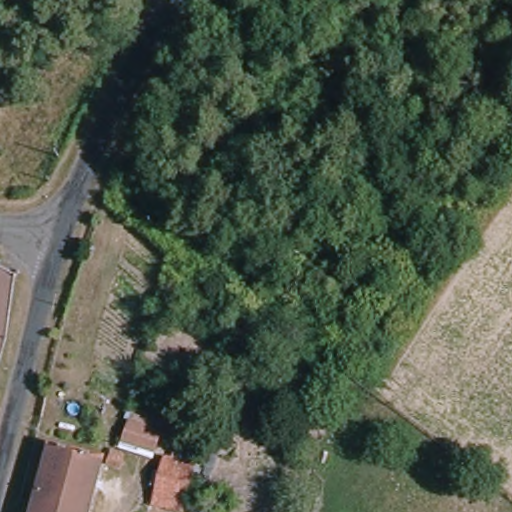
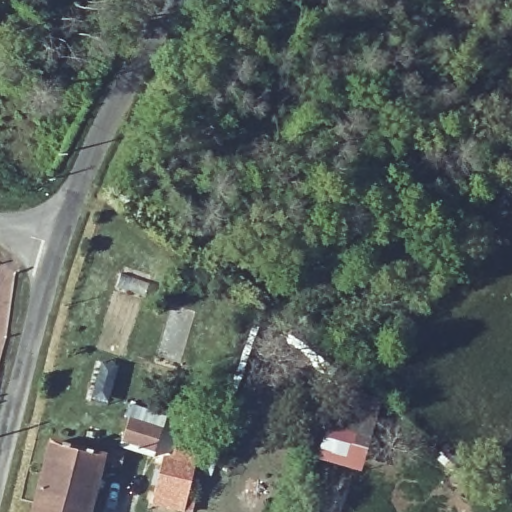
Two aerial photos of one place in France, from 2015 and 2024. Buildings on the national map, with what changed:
unchanged [(125,413),(152,422),(150,431),(142,455),(114,445),(121,422),(125,413)]
new [(317,462),(331,431),(372,426),(359,474),(317,462)]
unchanged [(59,512),(58,512),(33,505),(47,451),(73,457),(59,512)]
unchanged [(100,465),(88,512),(59,512),(73,457),(95,464),(100,465)]
unchanged [(175,512),(156,512),(140,509),(142,498),(148,500),(157,465),(166,467),(168,458),(186,462),(175,512)]
unchanged [(33,505),(58,512),(31,512),(33,505)]

